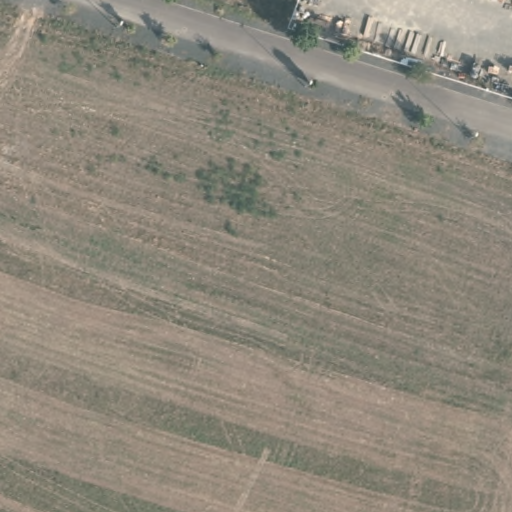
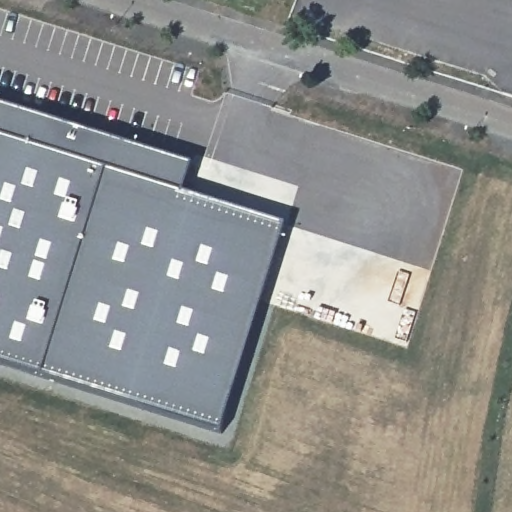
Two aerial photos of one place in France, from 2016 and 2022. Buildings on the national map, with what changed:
new [(220,433),(0,364),(0,103),(193,164),(183,193),(286,226),(220,433)]

